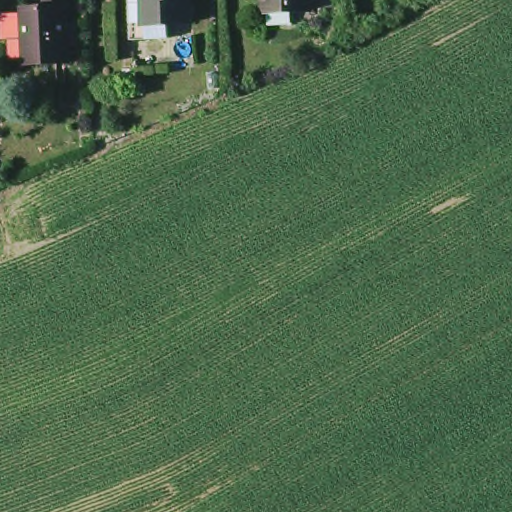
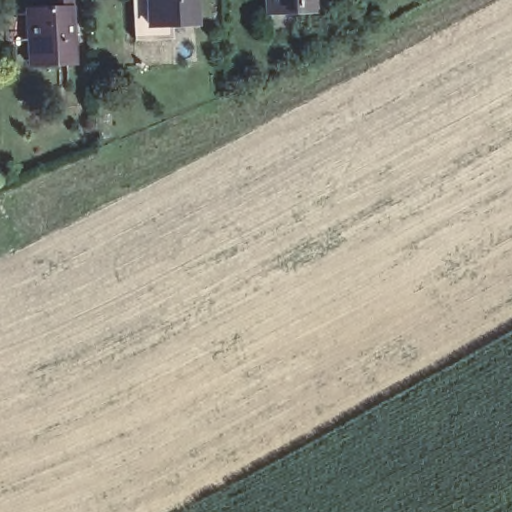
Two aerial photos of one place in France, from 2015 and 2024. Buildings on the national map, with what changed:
unchanged [(58,0),(80,0),(80,3),(82,61),(38,64),(37,6),(58,5),(58,0)]
unchanged [(159,17),(182,17),(183,35),(142,36),(142,0),(159,0),(159,17)]
unchanged [(159,17),(159,0),(203,0),(203,16),(182,17),(159,17)]
unchanged [(321,12),(276,14),(276,0),(321,0),(321,12)]

